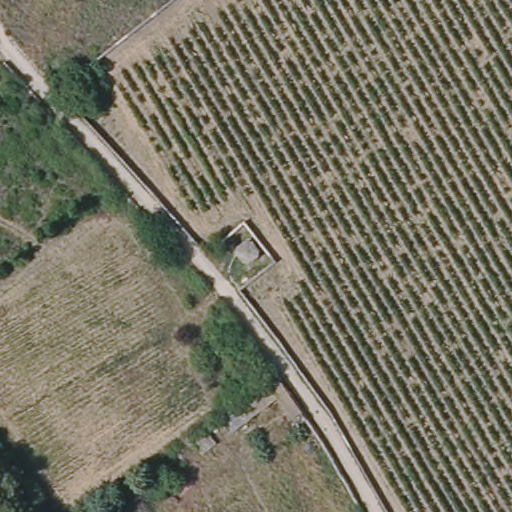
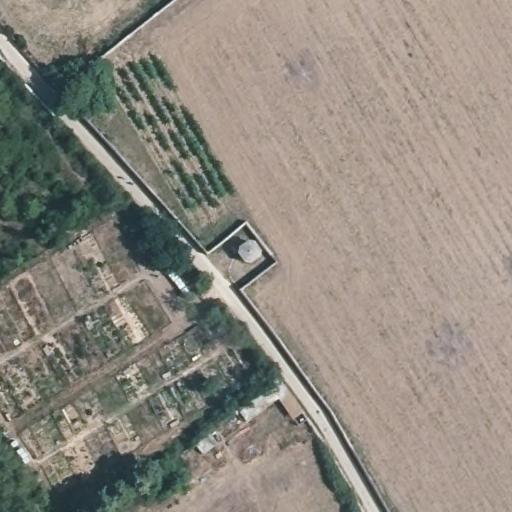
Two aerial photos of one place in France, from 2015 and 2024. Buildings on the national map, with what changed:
unchanged [(246,241),(252,243),(257,249),(256,256),(251,260),(244,259),(238,254),(239,246),(246,241)]
unchanged [(309,418),(299,425),(279,397),(246,421),(203,453),(194,442),(226,421),(283,381),(309,418)]

